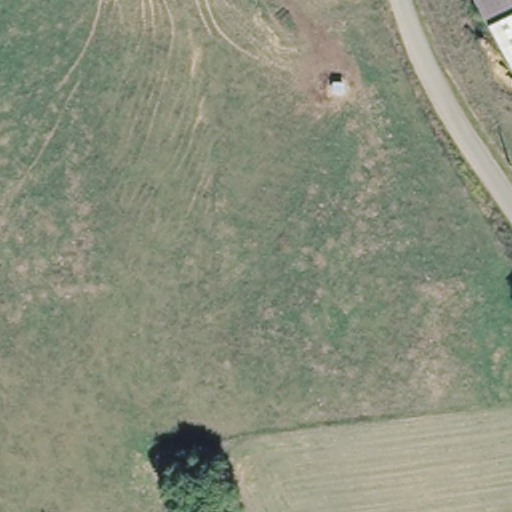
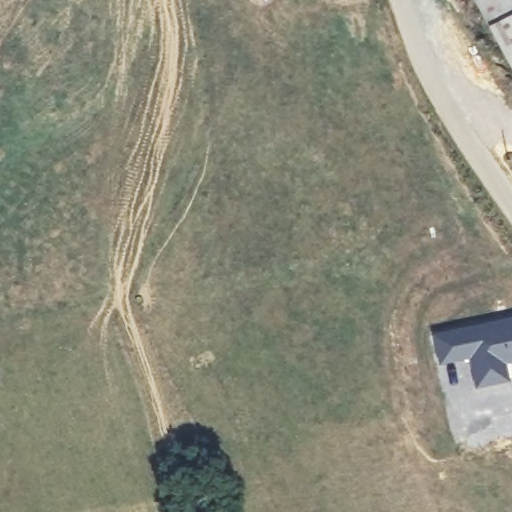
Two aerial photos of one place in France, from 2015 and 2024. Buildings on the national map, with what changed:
demolished [(490,23),(478,0),(512,0),(512,12),(490,23)]
new [(479,0),(512,0),(512,63),(479,0)]
new [(512,315),(512,363),(507,363),(511,382),(473,389),(472,387),(459,390),(452,362),(437,365),(430,332),(512,315)]

